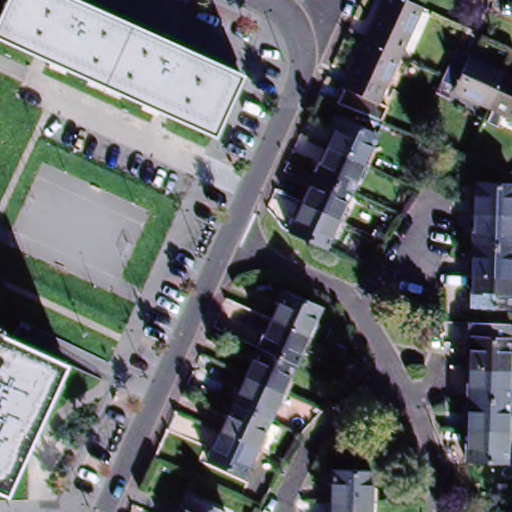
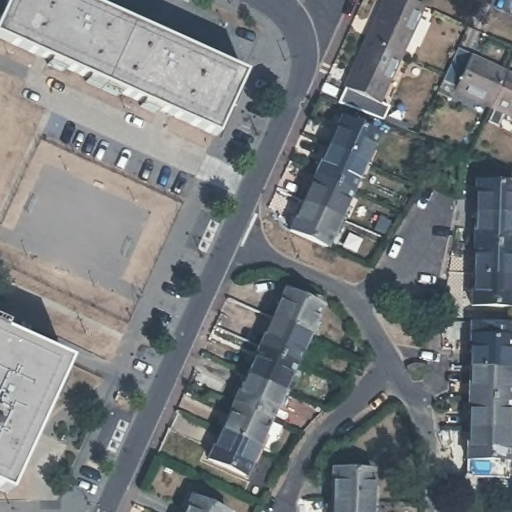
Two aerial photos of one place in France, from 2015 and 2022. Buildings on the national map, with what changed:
unchanged [(216,137),(0,39),(0,19),(9,0),(76,0),(244,76),(216,137)]
unchanged [(401,57),(369,42),(389,0),(403,0),(423,9),(401,57)]
unchanged [(379,105),(347,90),(369,42),(401,57),(379,105)]
unchanged [(442,96),(451,77),(463,50),(477,57),(476,60),(511,76),(497,107),(462,91),(457,103),(442,96)]
unchanged [(512,114),(505,130),(493,124),(500,109),(497,107),(511,76),(512,76),(512,114)]
unchanged [(331,147),(343,121),(378,137),(366,163),(331,147)]
unchanged [(353,190),(318,174),(331,147),(366,163),(353,190)]
unchanged [(353,190),(340,218),(305,202),(318,174),(353,190)]
unchanged [(476,214),(477,184),(512,185),(512,216),(476,214)]
unchanged [(340,218),(327,248),(291,231),(305,202),(340,218)]
unchanged [(475,245),(476,214),(512,216),(512,246),(475,245)]
unchanged [(474,275),(475,245),(512,246),(512,277),(474,275)]
unchanged [(512,277),(512,310),(472,308),(474,275),(512,277)]
unchanged [(273,317),(286,289),(322,304),(309,334),(273,317)]
unchanged [(296,361),(260,346),(273,317),(309,334),(296,361)]
unchanged [(0,491),(0,328),(3,329),(1,334),(66,363),(8,494),(0,491)]
unchanged [(472,339),(512,340),(511,371),(471,370),(472,339)]
unchanged [(296,361),(284,389),(248,373),(260,346),(296,361)]
unchanged [(511,371),(510,401),(470,400),(471,370),(511,371)]
unchanged [(222,430),(235,402),(248,373),(284,389),(271,418),(281,422),(268,450),(258,446),(245,473),(209,457),(222,430)]
unchanged [(469,431),(470,400),(510,401),(509,432),(469,431)]
unchanged [(508,462),(467,461),(469,431),(509,432),(508,462)]
unchanged [(334,474),(373,475),(372,505),(333,504),(334,474)]
unchanged [(217,512),(187,512),(192,501),(217,512)]
unchanged [(372,512),(333,512),(333,504),(372,505),(372,512)]

